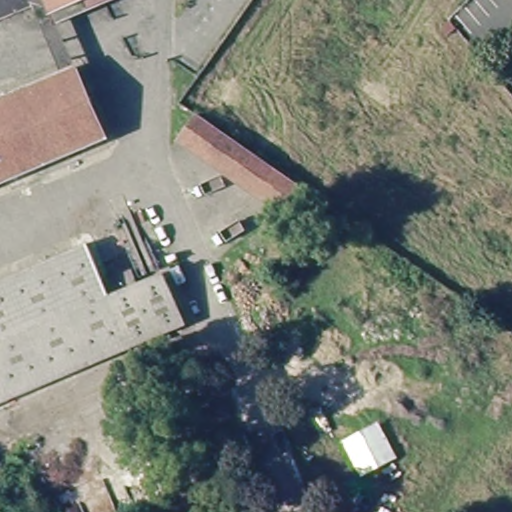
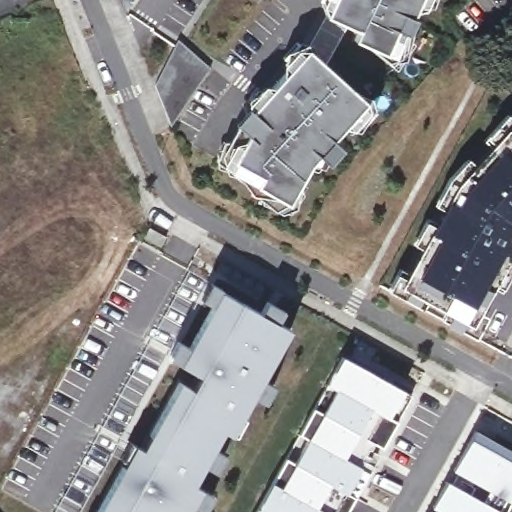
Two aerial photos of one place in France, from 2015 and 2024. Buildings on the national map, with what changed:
demolished [(46,8),(43,0),(95,0),(50,19),(46,8)]
new [(420,0),(395,58),(354,40),(358,31),(325,16),(333,0),(420,0)]
new [(170,126),(155,84),(179,40),(210,69),(170,126)]
new [(368,112),(353,130),(345,127),(331,140),(340,150),(327,165),(317,156),(308,165),(288,205),(257,188),(262,178),(234,163),(249,136),(235,125),(249,110),(251,111),(307,51),(365,103),(368,112)]
demolished [(73,70),(105,144),(0,188),(0,102),(62,75),(73,70)]
demolished [(307,191),(295,209),(285,201),(280,210),(180,140),(197,115),(307,191)]
new [(458,184),(508,129),(512,134),(512,252),(472,325),(402,286),(458,184)]
new [(149,228),(166,238),(161,247),(144,238),(149,228)]
demolished [(105,280),(134,268),(140,279),(167,267),(190,321),(0,406),(0,279),(87,240),(105,280)]
new [(124,466),(131,471),(134,466),(122,460),(131,442),(144,449),(180,382),(192,389),(200,376),(180,365),(169,358),(178,341),(190,348),(214,306),(202,299),(211,282),(223,289),(221,291),(261,313),(268,301),(285,310),(278,322),(291,330),(263,380),(275,386),(266,402),(254,396),(242,417),(246,419),(236,436),(225,430),(214,449),(225,455),(216,472),(205,465),(194,485),(202,489),(214,495),(205,512),(204,512),(193,506),(189,512),(96,512),(124,466)]
new [(343,357),(412,395),(383,448),(375,443),(365,460),(374,465),(370,472),(356,498),(347,493),(339,507),(347,512),(257,512),(343,357)]
new [(434,507),(448,481),(469,493),(475,481),(455,470),(475,431),(512,451),(512,503),(507,512),(444,512),(434,507)]

